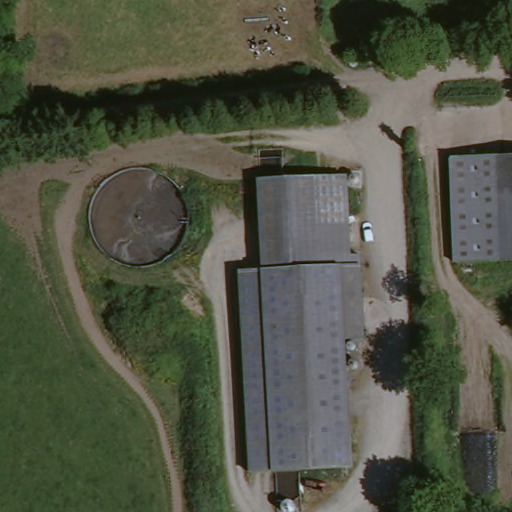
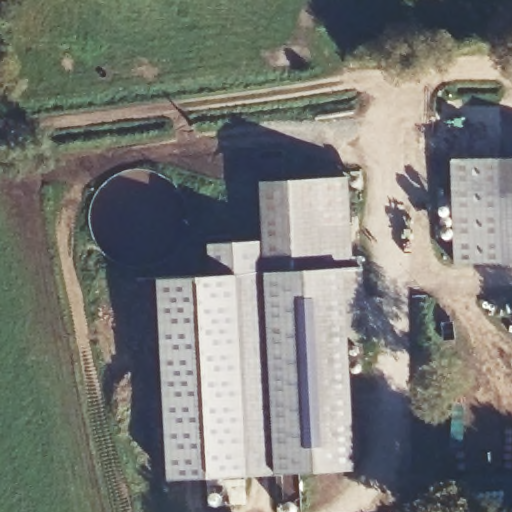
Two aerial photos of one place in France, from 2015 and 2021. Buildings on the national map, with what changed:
unchanged [(468,155),(512,155),(512,260),(469,260),(468,155)]
unchanged [(349,180),(353,260),(365,259),(368,344),(353,344),(357,469),(254,472),(247,271),(266,269),(259,185),(349,180)]
new [(266,269),(247,271),(254,472),(168,477),(157,278),(208,275),(207,244),(264,240),(266,269)]

